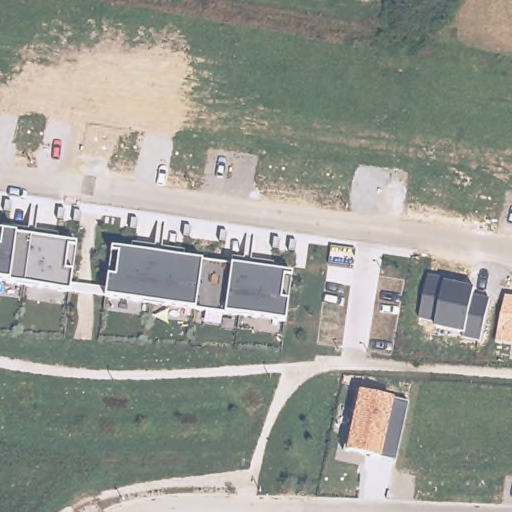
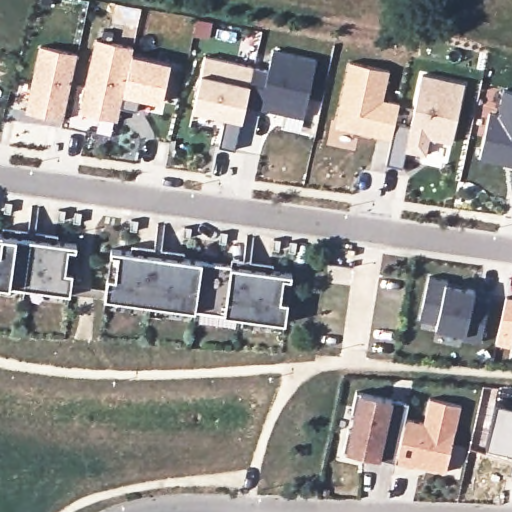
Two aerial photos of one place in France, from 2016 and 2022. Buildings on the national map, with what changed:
new [(96,36),(134,44),(132,51),(121,105),(118,117),(80,110),(96,36)]
new [(40,42),(77,51),(64,116),(26,108),(40,42)]
new [(254,62),(268,66),(272,46),(317,56),(303,119),(245,106),(254,62)]
new [(132,51),(170,59),(162,98),(140,94),(137,108),(121,105),(132,51)]
new [(205,52),(254,62),(245,106),(235,151),(218,147),(226,112),(194,105),(205,52)]
new [(350,57),(390,66),(384,96),(400,99),(396,117),(392,135),(336,122),(350,57)]
new [(392,135),(396,117),(412,121),(422,70),(466,79),(453,137),(430,133),(427,150),(407,146),(403,163),(387,160),(392,135)]
unchanged [(491,112),(498,112),(504,90),(512,91),(512,164),(481,158),(491,112)]
unchanged [(77,247),(69,247),(65,271),(72,272),(69,291),(10,283),(0,282),(0,232),(9,232),(5,226),(57,234),(61,239),(77,242),(77,247)]
unchanged [(292,277),(285,277),(281,299),(288,300),(285,320),(226,312),(196,307),(106,297),(109,275),(116,276),(119,254),(112,252),(112,247),(136,251),(134,244),(185,251),(187,257),(202,260),(236,265),(233,257),(275,262),(277,270),(293,272),(292,277)]
unchanged [(462,337),(465,333),(436,327),(436,321),(421,318),(430,276),(446,278),(447,283),(476,290),(475,295),(489,298),(480,341),(462,337)]
unchanged [(506,296),(512,296),(512,345),(496,342),(506,296)]
unchanged [(394,461),(381,457),(346,451),(358,392),(394,398),(408,402),(394,461)]
new [(407,415),(426,418),(432,394),(462,401),(448,467),(417,461),(417,462),(398,458),(407,415)]
new [(512,404),(512,452),(488,447),(498,402),(512,404)]

